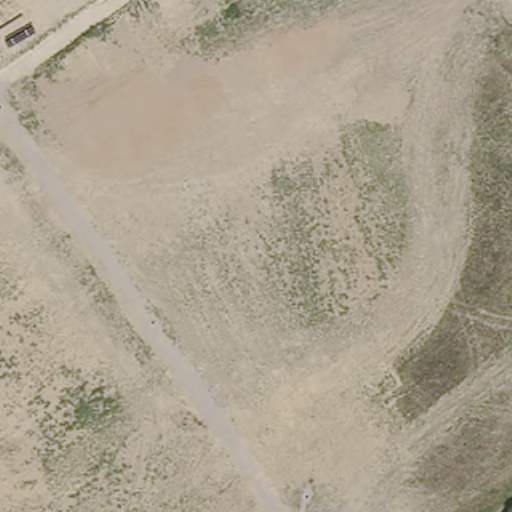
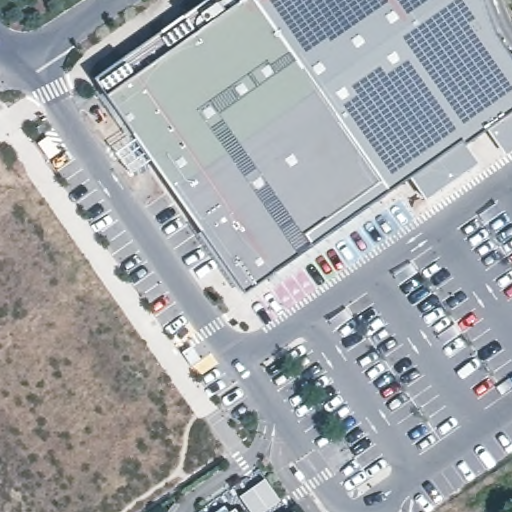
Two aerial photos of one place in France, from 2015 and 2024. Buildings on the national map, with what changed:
new [(379,181),(302,233),(312,248),(245,293),(110,95),(99,79),(209,0),(253,0),(379,181)]
new [(495,32),(512,56),(512,151),(506,155),(487,130),(467,145),(477,163),(425,200),(410,178),(312,248),(302,233),(379,181),(253,0),(484,0),(495,32)]
new [(375,77),(333,107),(275,25),(311,0),(321,0),(375,77)]
new [(281,501),(265,512),(251,512),(240,496),(265,479),(281,501)]
new [(229,512),(216,512),(225,506),(229,512)]
new [(238,512),(230,512),(236,508),(238,512)]
new [(248,512),(242,512),(246,510),(248,512)]

